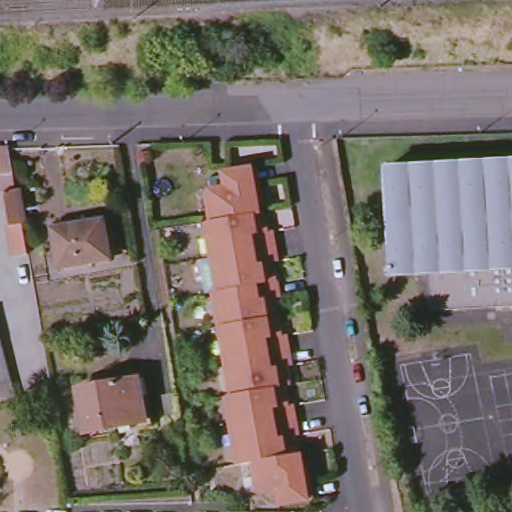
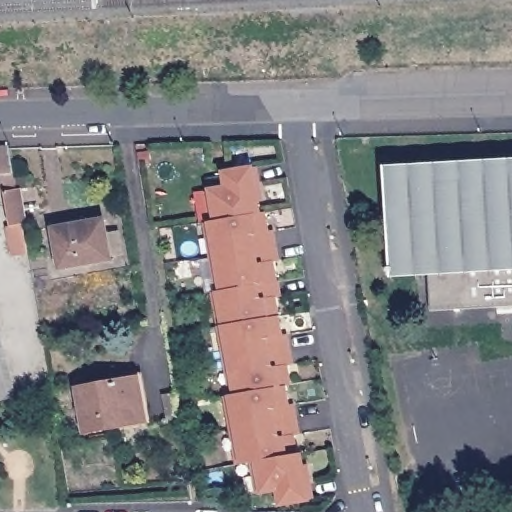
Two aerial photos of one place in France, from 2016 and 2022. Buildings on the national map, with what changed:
unchanged [(23,225),(28,255),(10,259),(6,228),(9,228),(4,193),(0,171),(0,149),(9,149),(13,168),(16,190),(23,225)]
unchanged [(512,158),(512,302),(425,306),(424,269),(386,270),(379,164),(512,158)]
unchanged [(231,399),(236,399),(220,295),(224,295),(213,225),(218,224),(214,194),(230,192),(228,177),(260,172),(263,188),(258,188),(263,218),(269,217),(270,226),(266,231),(267,237),(277,235),(281,266),(271,268),(273,274),(278,278),(279,287),(281,286),(283,302),(273,304),(274,309),(279,314),(281,330),(278,335),(279,341),(289,339),(294,370),(284,372),(284,378),(289,381),(291,390),(286,391),(287,398),(283,404),(284,409),(294,408),(299,441),(289,443),(290,449),(296,452),(297,460),(301,459),(306,489),(310,488),(313,504),(281,509),(278,494),(262,497),(257,467),(242,469),(231,399)]
unchanged [(103,220),(109,257),(60,265),(53,229),(103,220)]
unchanged [(0,335),(16,394),(0,398),(0,335)]
unchanged [(138,381),(145,424),(83,434),(76,391),(138,381)]

